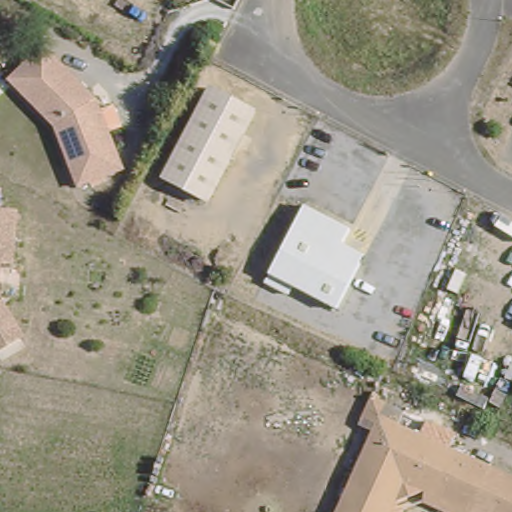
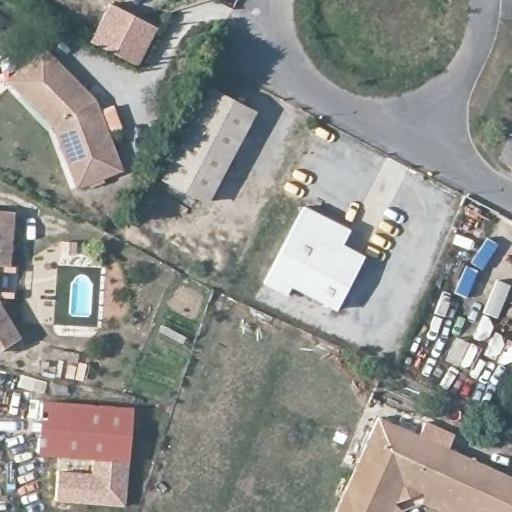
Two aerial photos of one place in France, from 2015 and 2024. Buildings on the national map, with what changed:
new [(90,41),(109,2),(156,26),(138,65),(90,41)]
unchanged [(93,90),(125,170),(77,186),(55,127),(8,79),(45,45),(93,90)]
unchanged [(206,90),(251,113),(203,205),(156,181),(206,90)]
unchanged [(280,295),(261,283),(302,206),(346,227),(336,250),(359,262),(334,307),(287,281),(280,295)]
unchanged [(13,216),(7,270),(0,271),(0,215),(13,216)]
demolished [(338,341),(329,361),(204,308),(216,285),(338,341)]
unchanged [(18,332),(0,346),(0,311),(18,332)]
new [(126,505),(55,501),(58,470),(90,473),(93,458),(38,453),(43,400),(133,407),(126,505)]
unchanged [(374,410),(444,442),(437,457),(384,432),(359,485),(344,477),(374,410)]
unchanged [(512,493),(512,512),(449,512),(430,503),(399,512),(346,512),(359,485),(384,432),(437,457),(512,493)]

